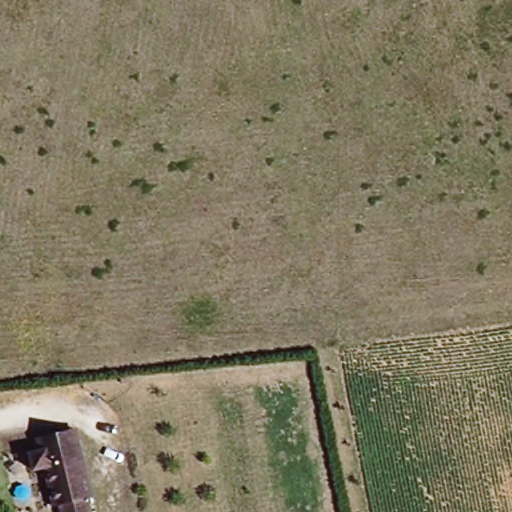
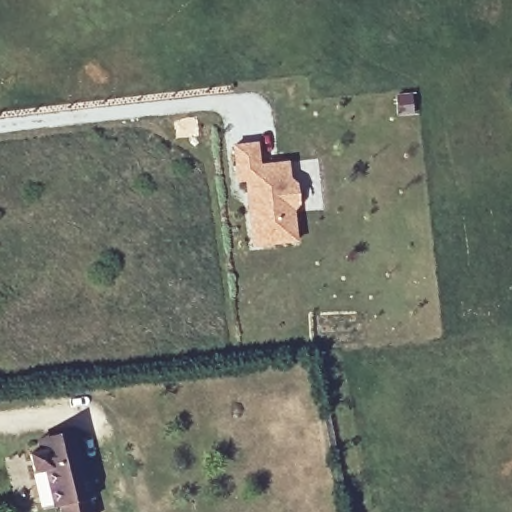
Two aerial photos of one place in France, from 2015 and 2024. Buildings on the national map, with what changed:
new [(262,164),(291,161),(293,178),(299,183),(300,204),(296,210),(299,242),(254,247),(246,182),(237,183),(233,145),(260,140),(262,164)]
unchanged [(66,504),(61,504),(50,463),(41,467),(34,449),(45,447),(45,442),(83,431),(98,492),(93,493),(97,508),(86,509),(86,512),(67,512),(66,504)]

